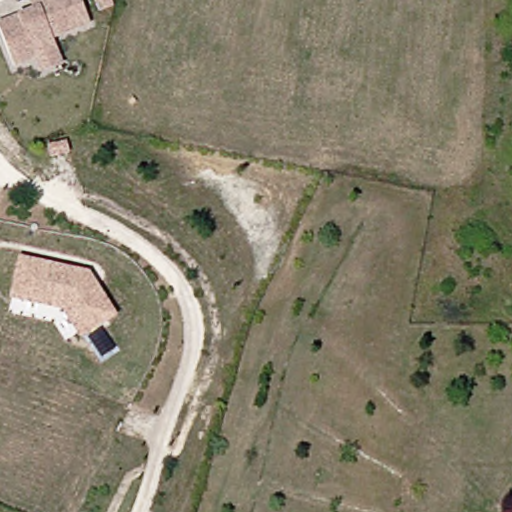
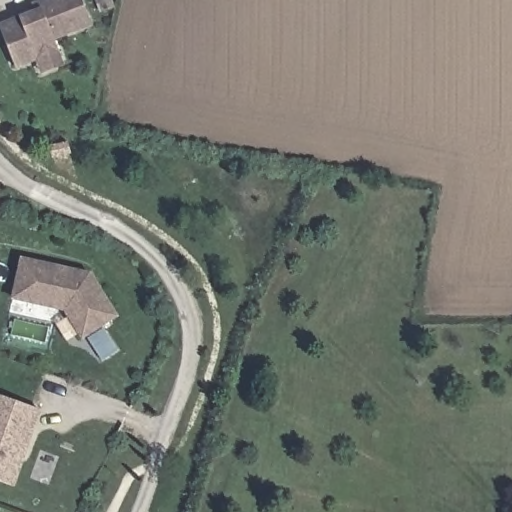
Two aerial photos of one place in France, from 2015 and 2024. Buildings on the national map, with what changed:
unchanged [(43,72),(38,58),(17,66),(1,24),(37,11),(35,4),(41,2),(46,0),(84,0),(93,23),(56,38),(60,50),(66,64),(43,72)]
unchanged [(62,154),(43,159),(41,148),(59,144),(62,154)]
unchanged [(64,309),(11,298),(20,256),(89,272),(117,316),(80,337),(64,309)]
new [(13,484),(0,480),(0,394),(40,409),(13,484)]

